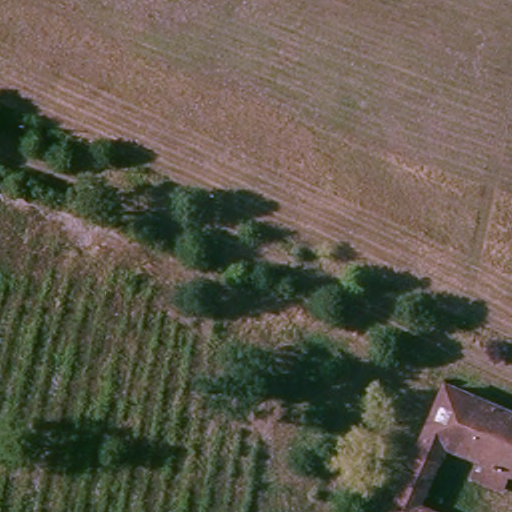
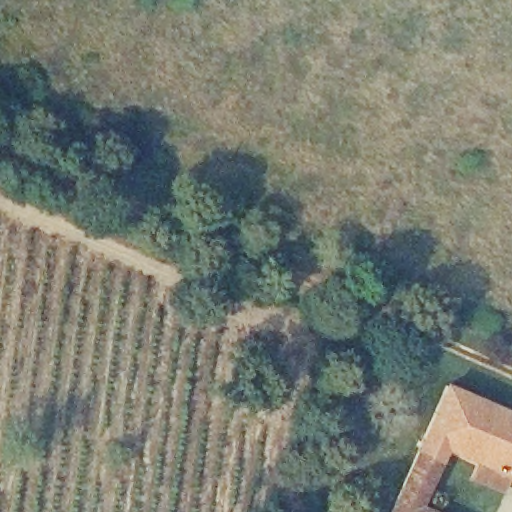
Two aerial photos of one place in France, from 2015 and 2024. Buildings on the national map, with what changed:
unchanged [(419,435),(438,380),(512,407),(512,444),(505,465),(443,443),(436,462),(423,502),(453,512),(391,512),(412,453),(419,435)]
unchanged [(491,501),(488,512),(470,512),(476,495),(491,501)]

